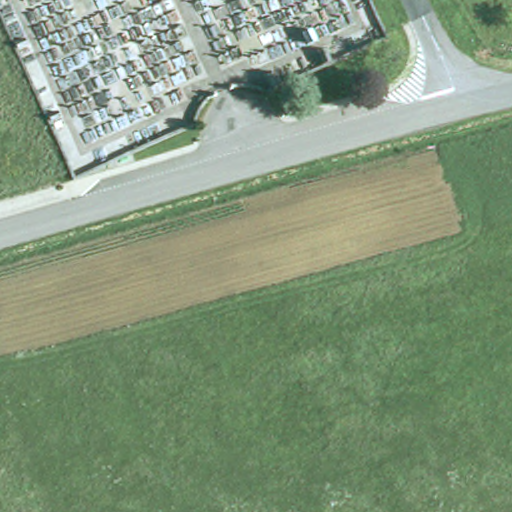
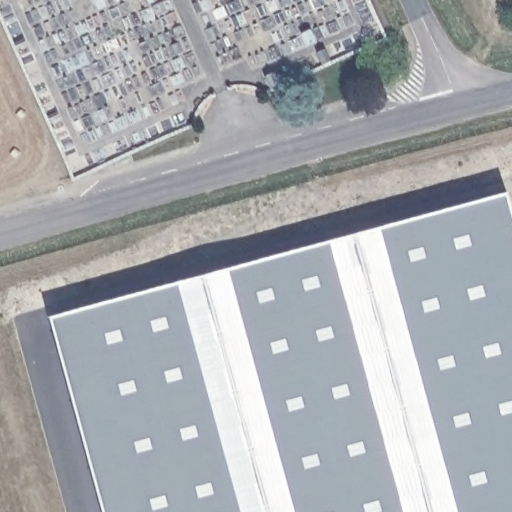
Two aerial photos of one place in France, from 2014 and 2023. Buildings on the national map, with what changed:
new [(512,512),(103,512),(50,317),(507,193),(512,211),(512,512)]

